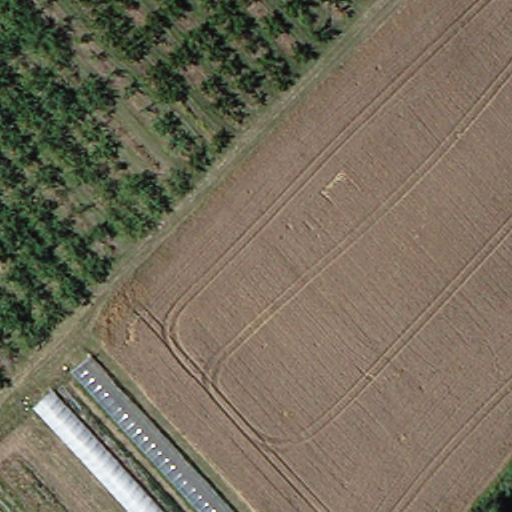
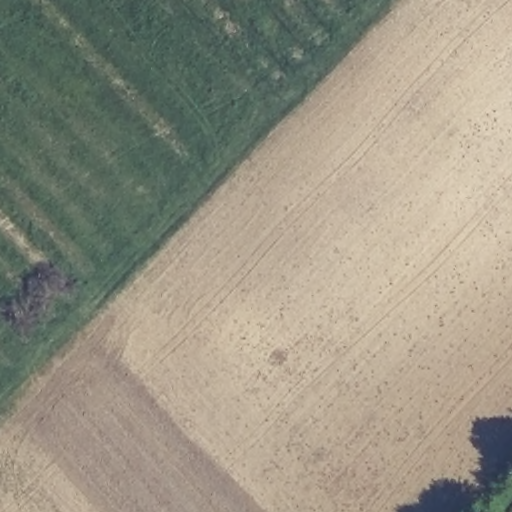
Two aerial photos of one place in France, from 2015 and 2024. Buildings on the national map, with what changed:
demolished [(96,352),(243,512),(136,512),(38,406),(96,352)]

